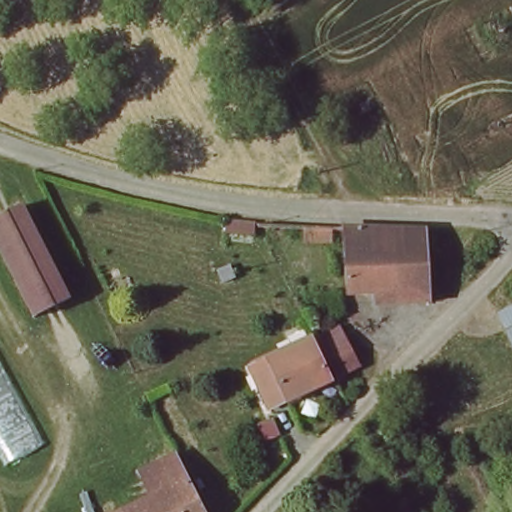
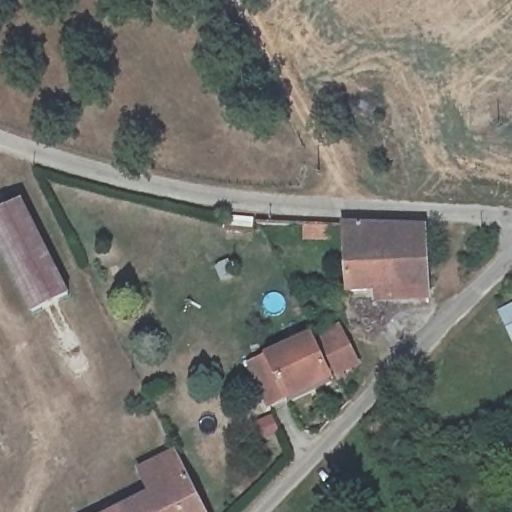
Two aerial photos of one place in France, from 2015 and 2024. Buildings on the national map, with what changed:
unchanged [(30,317),(0,257),(0,216),(22,205),(68,299),(30,317)]
unchanged [(375,305),(375,290),(346,291),(342,225),(350,225),(396,227),(423,229),(424,243),(427,287),(428,301),(375,305)]
unchanged [(493,315),(512,306),(512,347),(493,315)]
unchanged [(315,339),(336,329),(353,366),(333,376),(315,339)]
unchanged [(256,363),(310,339),(328,378),(268,406),(250,366),(256,363)]
demolished [(0,453),(0,361),(47,445),(7,466),(0,453)]
unchanged [(147,495),(135,473),(172,458),(182,478),(200,512),(113,512),(147,495)]

